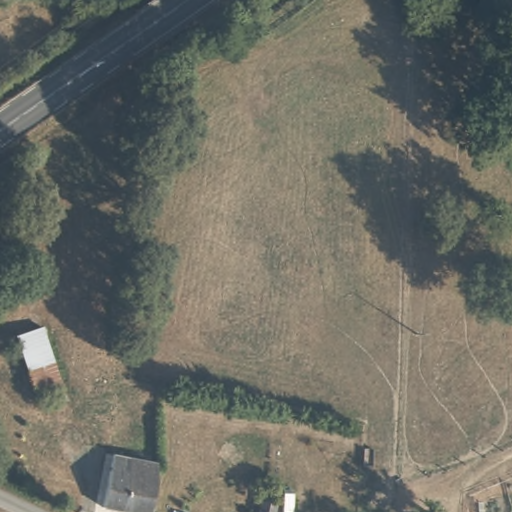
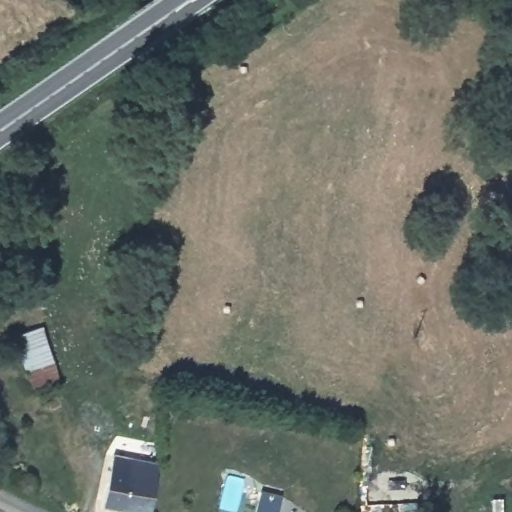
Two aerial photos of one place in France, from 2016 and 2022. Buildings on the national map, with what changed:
unchanged [(65,375),(44,382),(47,392),(35,397),(24,365),(14,335),(47,323),(57,352),(65,375)]
unchanged [(150,512),(143,512),(103,504),(108,466),(111,449),(131,452),(157,457),(157,471),(150,512)]
unchanged [(280,505),(278,512),(259,512),(261,502),(280,505)]

